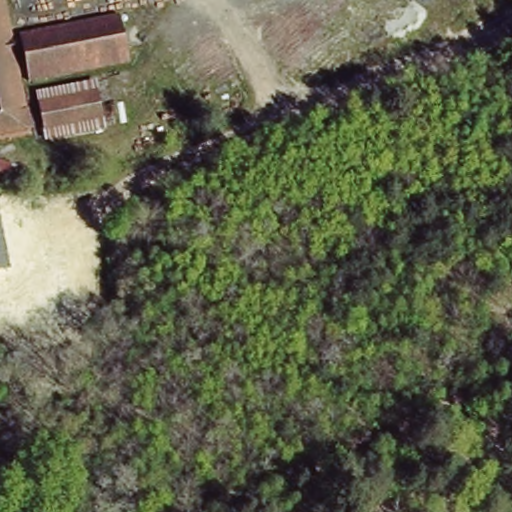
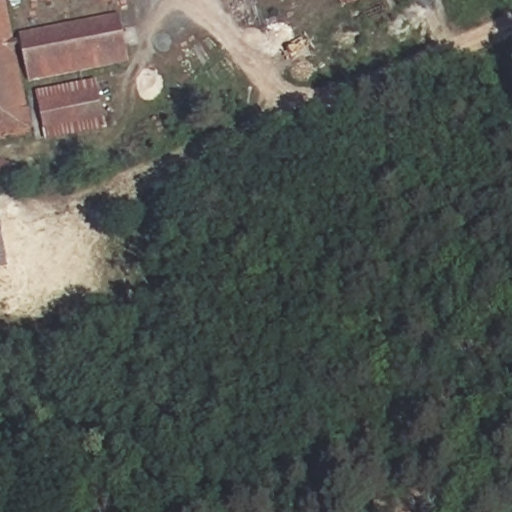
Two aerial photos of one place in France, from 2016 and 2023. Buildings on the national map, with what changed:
unchanged [(22,41),(21,34),(121,16),(131,60),(30,82),(22,51),(15,54),(30,126),(0,132),(0,0),(5,0),(14,42),(22,41)]
unchanged [(105,105),(110,127),(49,137),(38,92),(100,82),(105,105)]
unchanged [(0,273),(0,209),(13,271),(0,273)]

